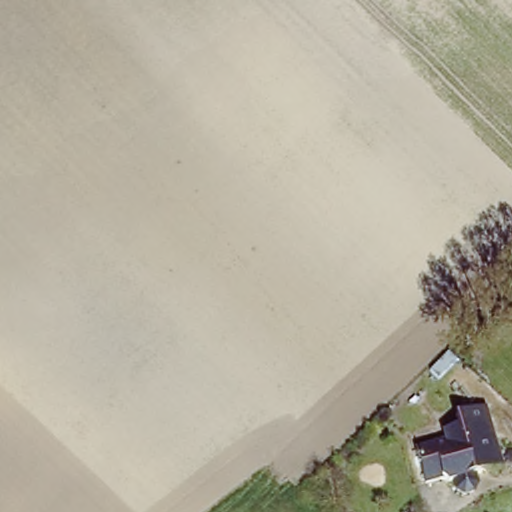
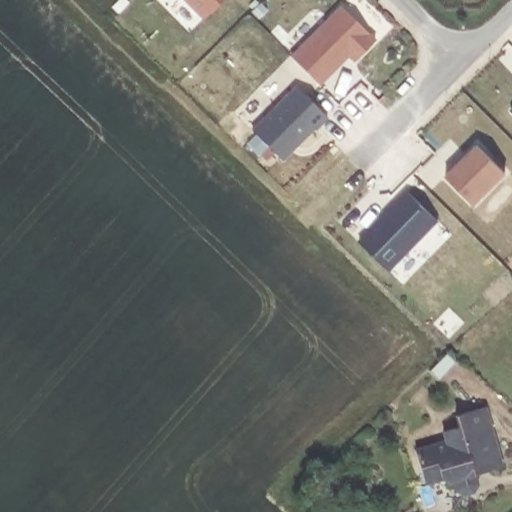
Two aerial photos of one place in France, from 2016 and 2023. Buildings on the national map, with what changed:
new [(184,0),(223,0),(204,19),(184,0)]
new [(341,4),(377,39),(355,62),(350,56),(321,85),(290,55),(341,4)]
new [(295,85),(329,119),(317,131),(315,129),(284,160),(252,130),(295,85)]
new [(510,111),(512,109),(512,113),(510,111)]
new [(477,144),(508,174),(474,207),(445,177),(477,144)]
new [(406,191),(438,221),(390,271),(358,241),(406,191)]
unchanged [(477,486),(473,493),(464,496),(456,491),(454,481),(448,483),(442,480),(425,484),(415,452),(434,447),(447,443),(444,433),(459,428),(456,417),(485,409),(502,468),(485,472),(474,475),(477,486)]

